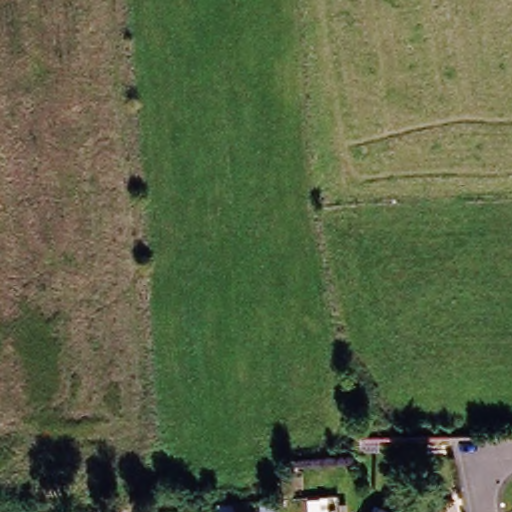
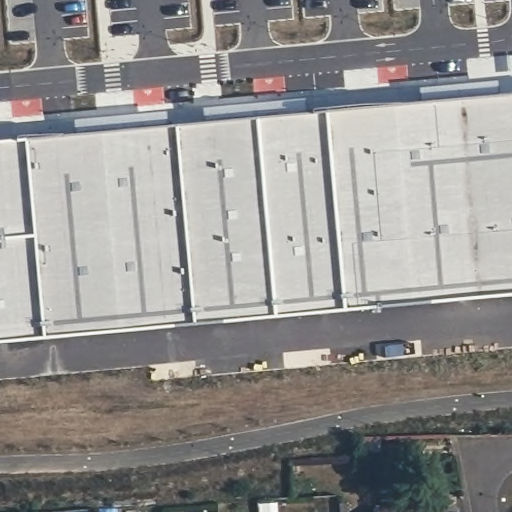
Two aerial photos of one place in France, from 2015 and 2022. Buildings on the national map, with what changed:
new [(0,342),(0,141),(512,95),(512,296),(0,342)]
unchanged [(357,440),(377,439),(377,451),(357,452),(357,440)]
unchanged [(379,512),(382,508),(388,512),(379,512)]

